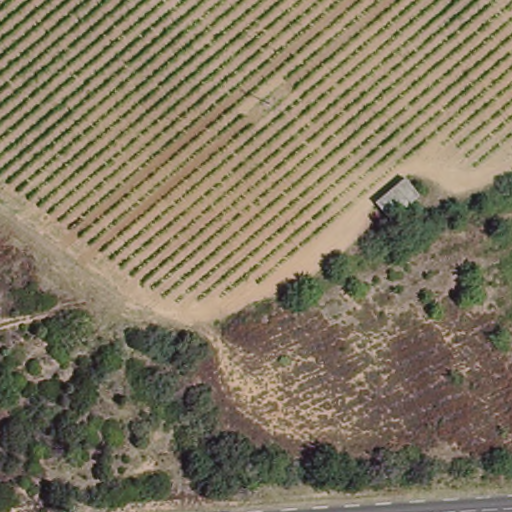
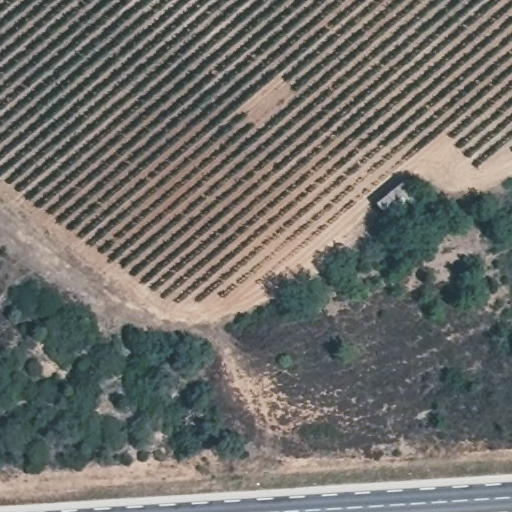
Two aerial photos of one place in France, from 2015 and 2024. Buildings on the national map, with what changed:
unchanged [(422,195),(392,218),(377,199),(408,175),(422,195)]

